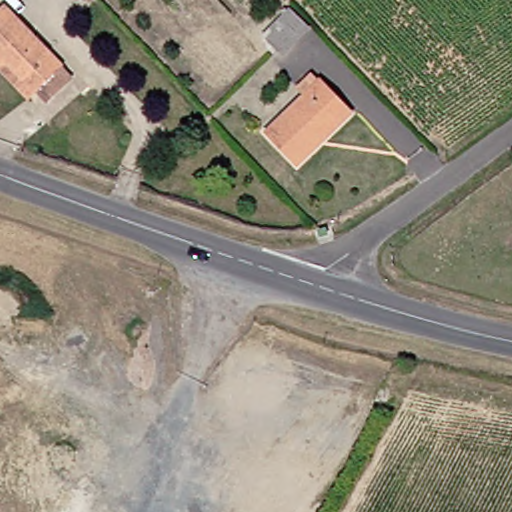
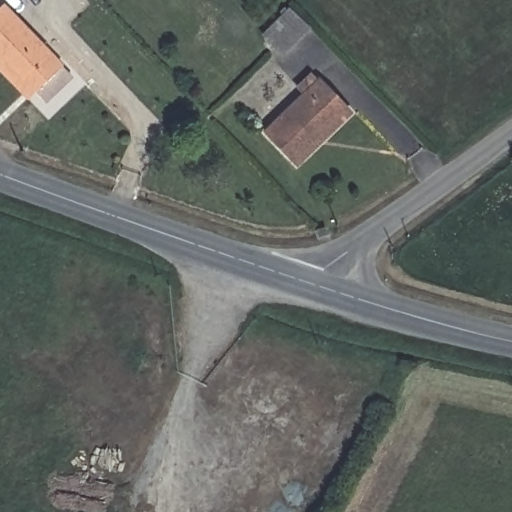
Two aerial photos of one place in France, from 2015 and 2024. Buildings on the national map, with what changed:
unchanged [(30,87),(24,93),(0,69),(0,2),(57,61),(68,72),(41,97),(30,87)]
unchanged [(303,27),(278,54),(260,37),(285,10),(303,27)]
unchanged [(303,150),(287,165),(255,132),(295,95),(288,87),(302,75),(308,82),(310,80),(336,107),(341,113),(303,150)]

